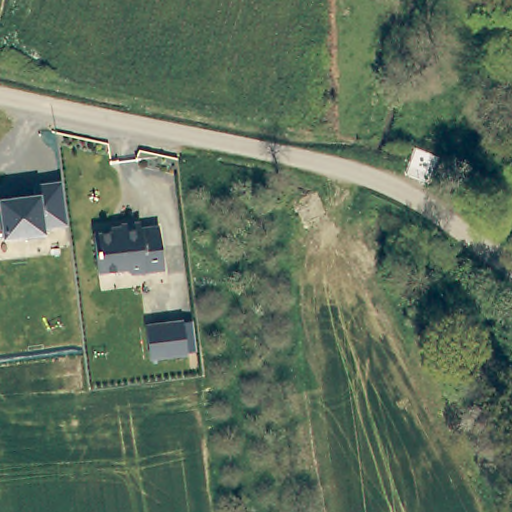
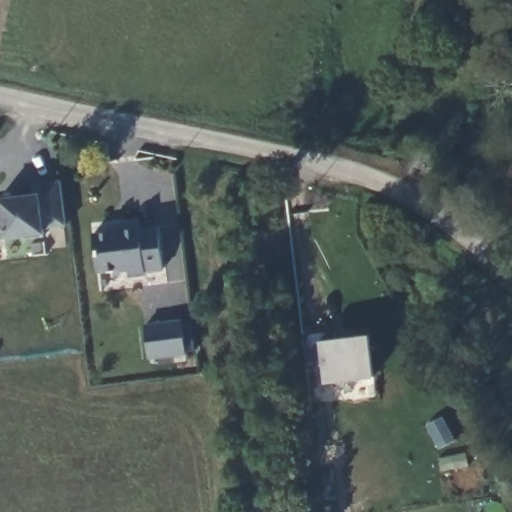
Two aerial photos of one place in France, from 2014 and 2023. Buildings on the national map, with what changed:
unchanged [(44,218),(46,227),(26,230),(26,226),(4,228),(4,223),(0,224),(0,200),(1,200),(0,195),(0,190),(35,185),(34,176),(62,172),(67,215),(44,218)]
unchanged [(90,231),(117,227),(117,222),(135,219),(136,225),(154,223),(160,266),(127,270),(121,266),(95,269),(90,231)]
unchanged [(147,320),(184,315),(188,348),(151,352),(147,320)]
new [(336,331),(337,337),(371,331),(376,378),(325,384),(322,360),(306,362),(302,335),(336,331)]

